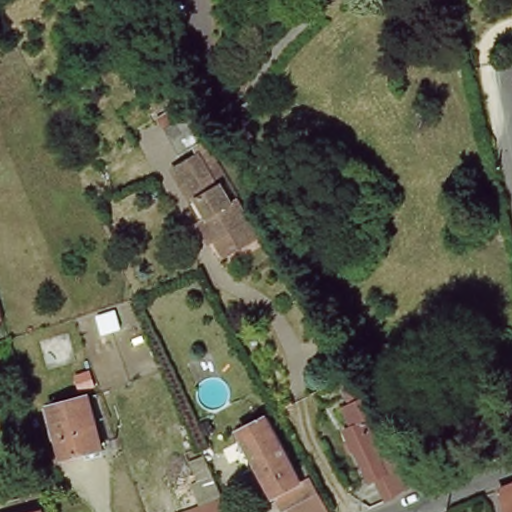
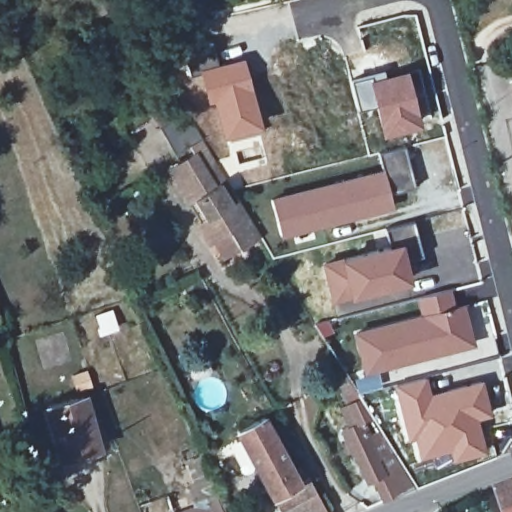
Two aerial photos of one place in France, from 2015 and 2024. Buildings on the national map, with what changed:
unchanged [(101,41),(122,29),(128,40),(107,52),(101,41)]
new [(243,56),(261,126),(223,136),(197,69),(243,56)]
new [(405,67),(419,123),(379,132),(372,105),(356,109),(349,77),(405,67)]
unchanged [(214,244),(208,247),(195,227),(200,225),(169,175),(196,158),(191,151),(176,160),(160,134),(152,122),(162,115),(170,127),(186,117),(260,239),(241,251),(224,261),(214,244)]
new [(402,143),(414,187),(390,194),(381,167),(377,150),(402,143)]
new [(381,167),(390,194),(393,206),(344,222),(281,238),(270,197),(381,167)]
new [(389,242),(385,226),(412,220),(421,257),(406,261),(410,279),(331,302),(319,261),(389,242)]
new [(426,375),(431,391),(482,379),(491,416),(478,420),(485,451),(449,460),(446,450),(417,457),(412,438),(406,440),(392,383),(426,375)]
unchanged [(352,377),(361,391),(365,398),(355,402),(351,396),(342,382),(352,377)]
unchanged [(99,448),(61,458),(47,407),(86,397),(99,448)]
unchanged [(390,502),(381,481),(375,483),(360,451),(358,451),(349,431),(357,427),(349,408),(367,400),(378,417),(368,422),(374,433),(384,427),(420,489),(390,502)]
unchanged [(315,471),(321,485),(330,500),(336,512),(294,512),(290,502),(285,505),(242,427),(270,412),(299,465),(309,460),(315,471)]
unchanged [(506,512),(498,489),(512,483),(512,512),(506,512)]
unchanged [(208,500),(218,496),(225,512),(175,512),(175,511),(208,500)]

